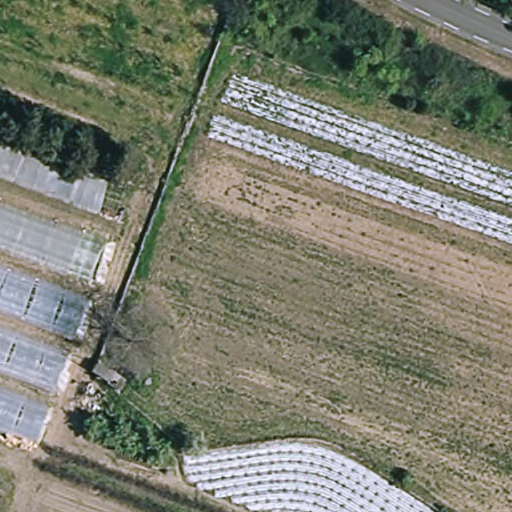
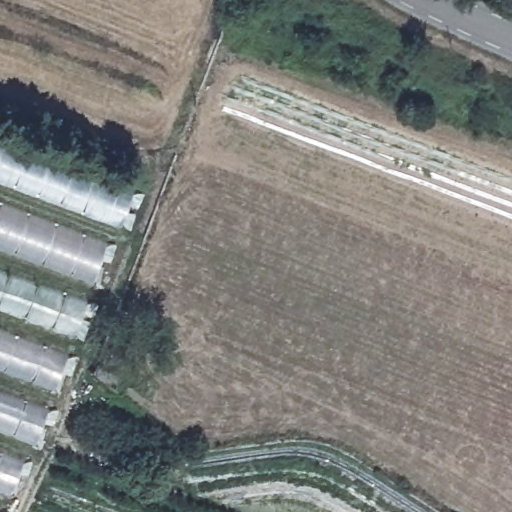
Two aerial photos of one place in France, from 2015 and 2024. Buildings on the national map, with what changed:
unchanged [(0,434),(0,134),(136,185),(38,447),(0,434)]
new [(11,497),(0,492),(0,451),(25,460),(11,497)]

